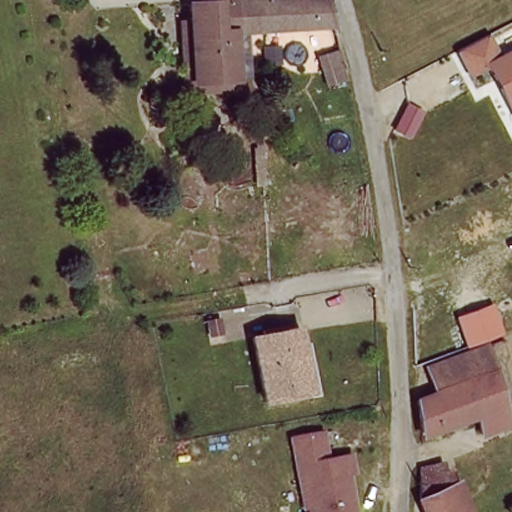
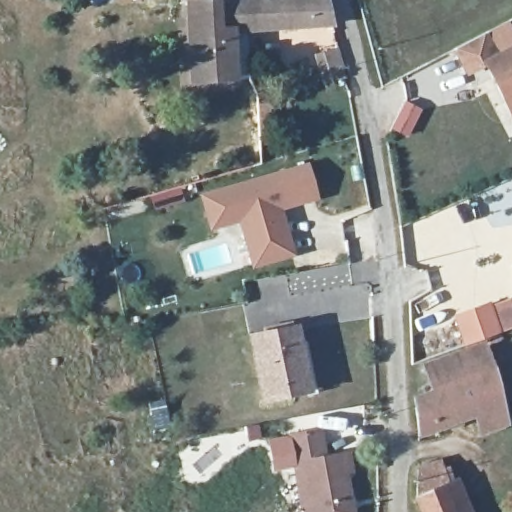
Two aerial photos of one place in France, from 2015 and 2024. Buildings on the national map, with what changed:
unchanged [(189,87),(181,10),(180,0),(263,0),(264,5),(326,2),(329,19),(331,31),(252,34),(244,34),(238,34),(228,35),(230,87),(231,100),(191,101),(189,87)]
unchanged [(462,79),(450,52),(484,33),(495,56),(512,47),(512,125),(484,75),(462,79)]
unchanged [(347,77),(329,82),(321,52),(341,45),(347,77)]
new [(284,213),(297,259),(253,271),(240,226),(211,234),(200,196),(308,166),(318,203),(284,213)]
new [(179,191),(183,204),(167,209),(163,196),(179,191)]
unchanged [(501,332),(464,347),(454,317),(490,304),(501,332)]
unchanged [(249,336),(293,327),(308,392),(264,401),(249,336)]
unchanged [(430,399),(423,374),(477,354),(485,378),(491,377),(494,395),(500,393),(502,399),(495,402),(505,427),(500,429),(500,433),(477,441),(472,425),(419,440),(414,405),(430,399)]
unchanged [(287,437),(322,430),(327,457),(349,453),(353,474),(348,475),(354,512),(305,512),(299,508),(287,437)]
unchanged [(420,485),(420,473),(445,467),(447,477),(452,490),(459,512),(423,512),(420,502),(420,485)]

